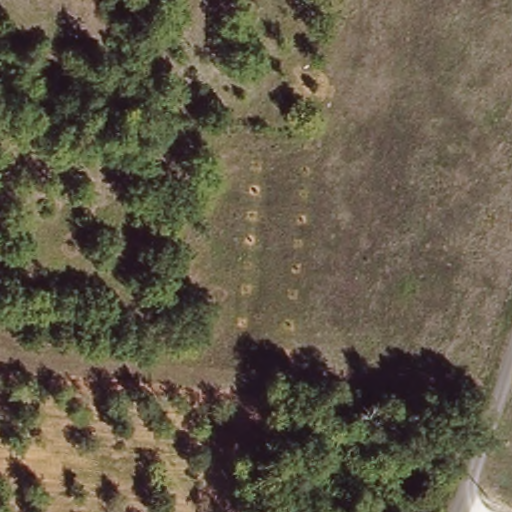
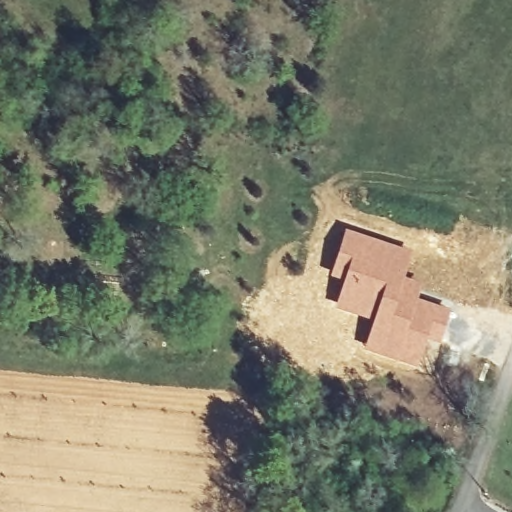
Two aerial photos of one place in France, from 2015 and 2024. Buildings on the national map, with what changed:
new [(344,228),(413,251),(405,277),(422,282),(417,297),(451,308),(439,345),(426,341),(420,367),(362,349),(371,321),(333,308),(341,282),(327,276),(344,228)]

